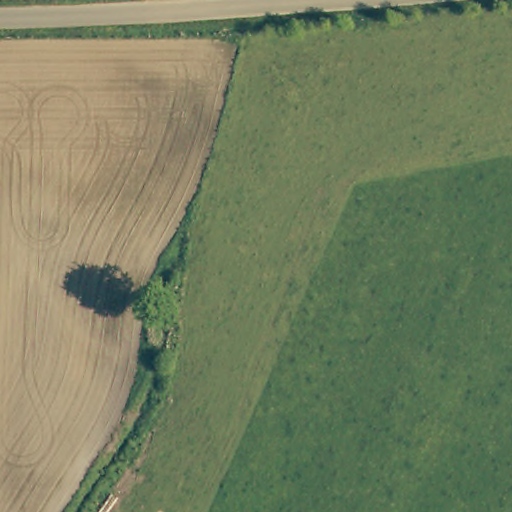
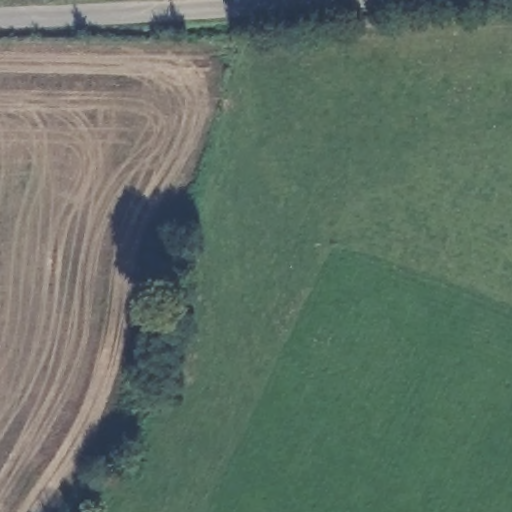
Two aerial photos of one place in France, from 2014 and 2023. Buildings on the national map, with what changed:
[]

